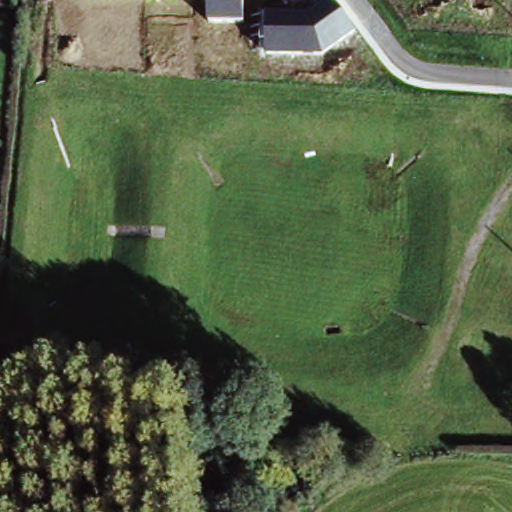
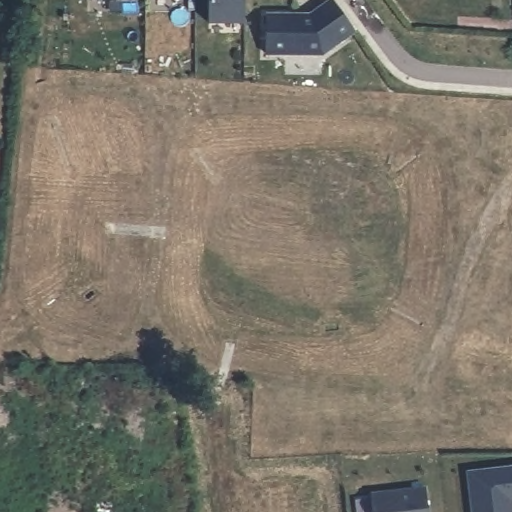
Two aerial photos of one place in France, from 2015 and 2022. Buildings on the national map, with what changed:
unchanged [(208,22),(208,0),(244,0),(244,22),(208,22)]
unchanged [(329,0),(332,0),(355,31),(324,55),(265,54),(266,14),(309,14),(329,0)]
new [(512,462),(512,497),(509,497),(510,512),(474,512),(469,467),(512,462)]
new [(424,488),(427,512),(371,512),(369,495),(424,488)]

